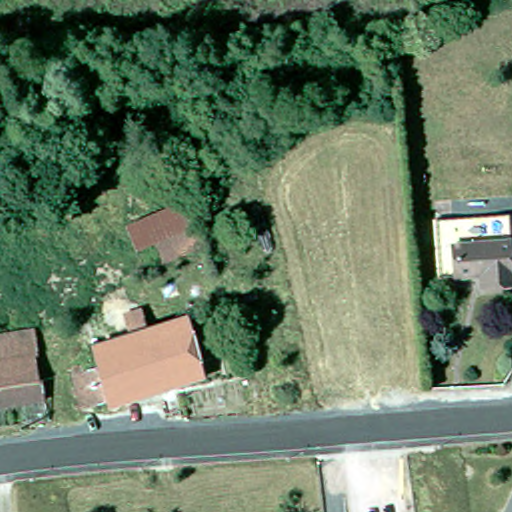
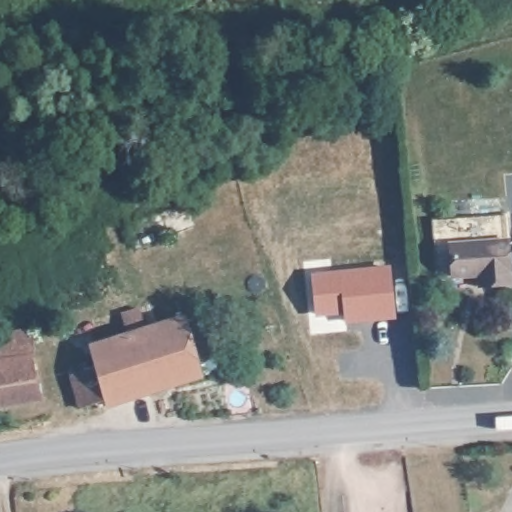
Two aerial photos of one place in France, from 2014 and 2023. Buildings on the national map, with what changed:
unchanged [(207,239),(162,256),(158,243),(138,250),(129,222),(192,199),(207,239)]
unchanged [(512,215),(512,285),(495,287),(494,216),(512,215)]
unchanged [(485,275),(443,278),(440,220),(494,216),(495,287),(486,287),(485,275)]
new [(391,264),(397,318),(345,323),(344,313),(315,316),(312,272),(391,264)]
unchanged [(207,371),(114,400),(96,343),(189,311),(207,371)]
unchanged [(0,423),(0,335),(36,330),(50,416),(0,423)]
demolished [(78,497),(154,482),(159,512),(81,512),(78,497)]

